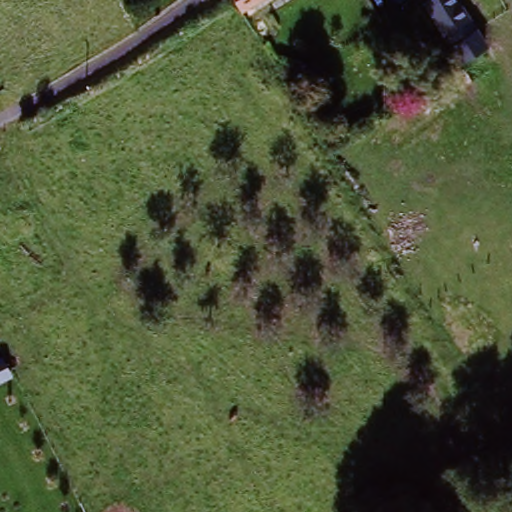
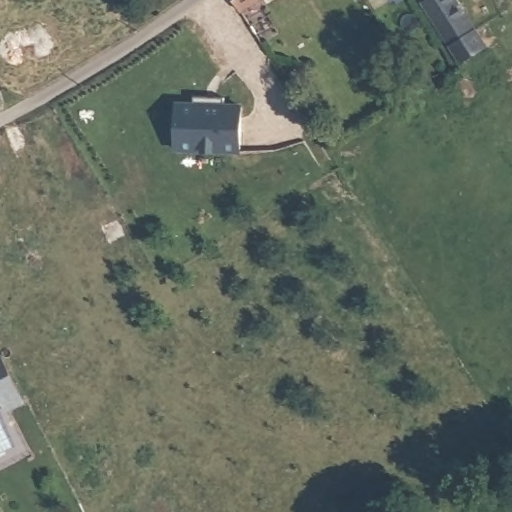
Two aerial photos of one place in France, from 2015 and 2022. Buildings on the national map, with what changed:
unchanged [(256,0),(264,0),(258,4),(256,0)]
unchanged [(422,0),(462,0),(488,46),(457,62),(422,0)]
new [(177,104),(194,104),(194,97),(225,97),(225,105),(242,105),(240,151),(175,149),(177,104)]

